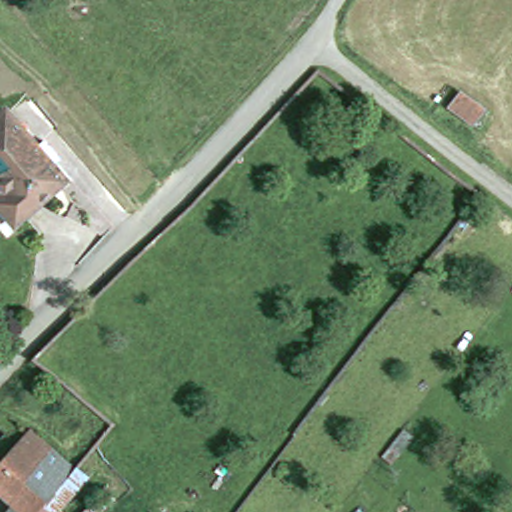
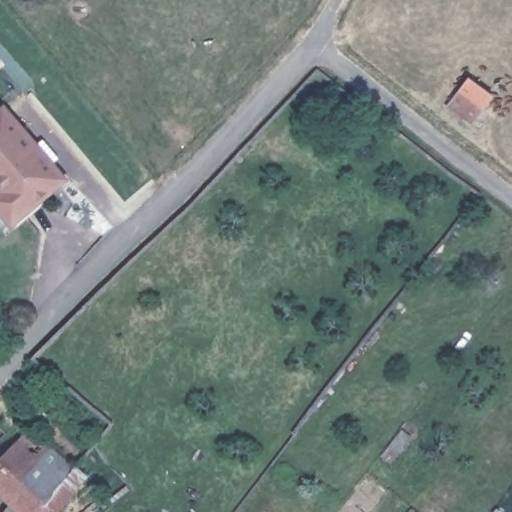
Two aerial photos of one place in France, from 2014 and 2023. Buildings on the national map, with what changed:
unchanged [(472,129),(448,111),(461,95),(485,114),(472,129)]
unchanged [(23,224),(20,219),(2,200),(10,192),(0,182),(0,115),(8,108),(40,141),(46,136),(58,150),(51,158),(67,177),(43,198),(47,204),(23,224)]
unchanged [(0,491),(0,467),(32,429),(77,469),(42,512),(23,512),(19,508),(0,491)]
unchanged [(77,469),(92,478),(63,512),(42,512),(77,469)]
unchanged [(19,508),(23,512),(16,512),(19,508)]

